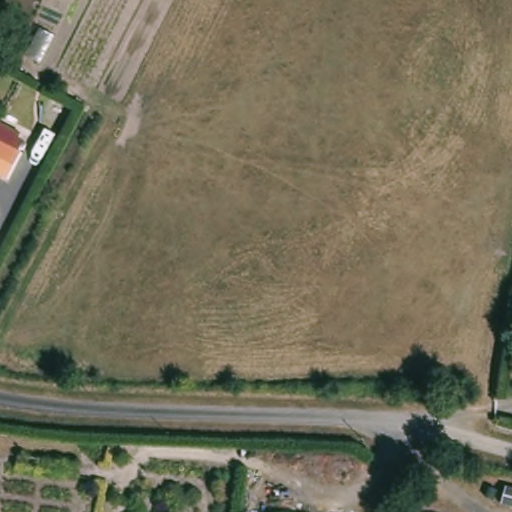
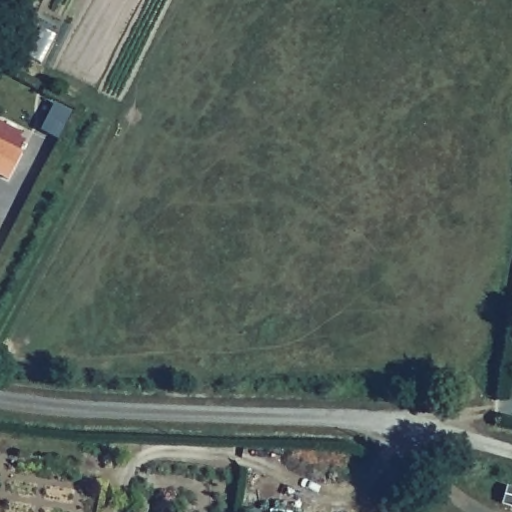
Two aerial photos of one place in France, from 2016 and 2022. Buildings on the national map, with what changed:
unchanged [(7,177),(0,174),(0,142),(20,154),(7,177)]

